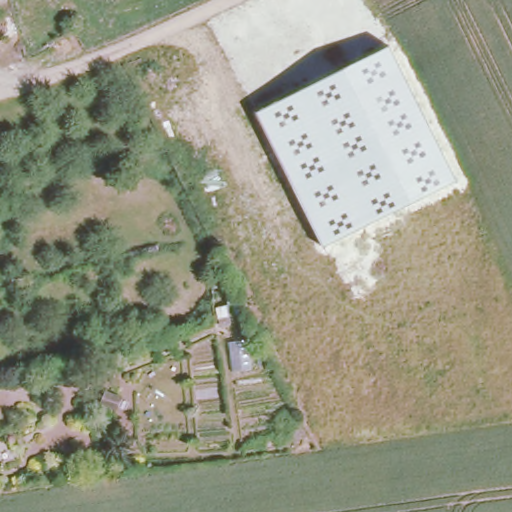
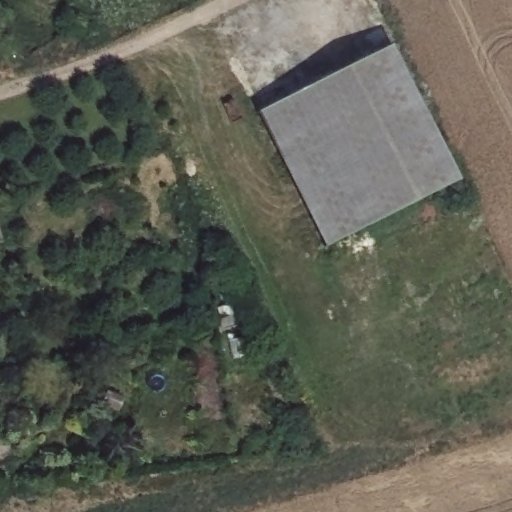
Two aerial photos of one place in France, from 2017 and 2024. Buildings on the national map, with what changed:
unchanged [(324,247),(257,113),(391,46),(457,180),(324,247)]

